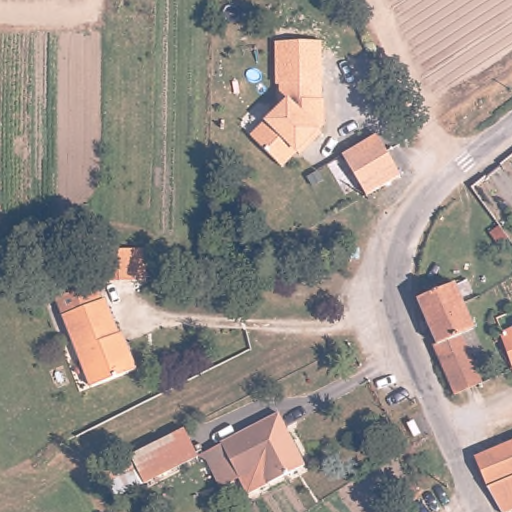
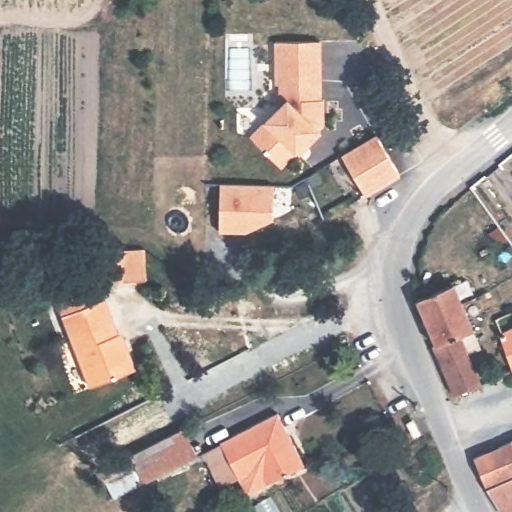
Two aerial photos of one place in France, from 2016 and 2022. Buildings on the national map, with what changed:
unchanged [(274,85),(275,41),(321,41),(321,83),(281,83),(274,85)]
unchanged [(280,164),(252,136),(282,106),(281,83),(283,83),(321,83),(321,99),(324,99),(325,123),(319,129),(322,131),(308,146),(305,143),(282,166),(280,164)]
unchanged [(353,170),(343,153),(376,135),(386,150),(401,175),(368,194),(353,170)]
new [(271,220),(247,233),(219,233),(220,184),(272,186),(271,220)]
unchanged [(100,251),(144,244),(145,254),(149,275),(105,283),(100,255),(100,251)]
unchanged [(91,387),(59,298),(99,284),(105,301),(107,300),(124,344),(126,344),(135,371),(91,387)]
unchanged [(417,299),(454,284),(473,328),(461,334),(467,350),(482,383),(455,395),(435,346),(436,345),(417,299)]
unchanged [(510,369),(495,334),(512,326),(512,368),(510,369)]
unchanged [(218,443),(274,415),(300,466),(244,495),(218,443)]
unchanged [(178,428),(192,455),(139,483),(125,456),(178,428)]
unchanged [(511,440),(512,439),(512,442),(511,440)]
unchanged [(467,459),(511,440),(512,442),(512,508),(503,512),(494,512),(482,494),(467,459)]
unchanged [(106,485),(100,488),(94,475),(126,460),(139,483),(114,497),(106,485)]

